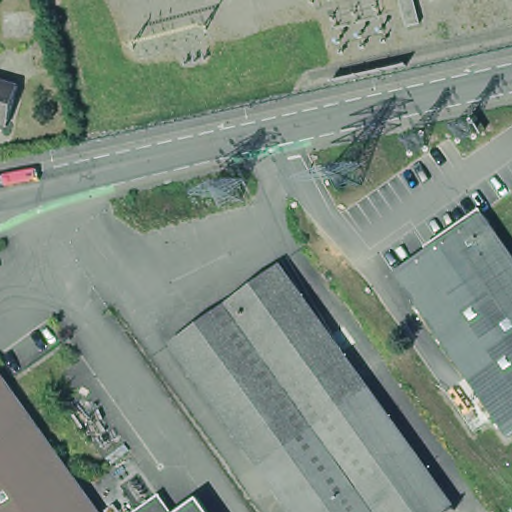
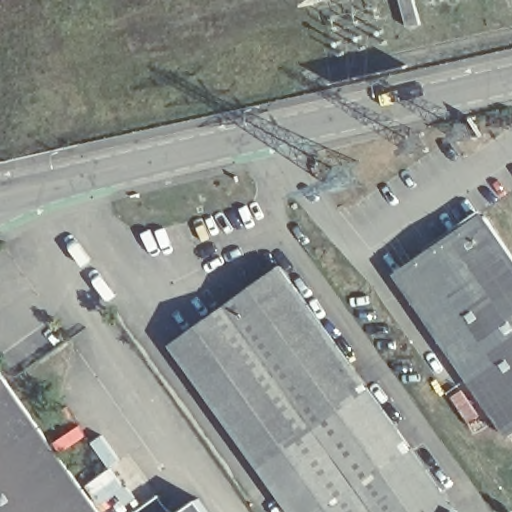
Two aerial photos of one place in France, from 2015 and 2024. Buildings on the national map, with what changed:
demolished [(17,92),(11,115),(7,131),(0,129),(0,87),(17,92)]
unchanged [(392,275),(481,214),(512,259),(512,429),(502,435),(392,275)]
unchanged [(418,453),(335,512),(297,512),(177,345),(285,267),(418,453)]
unchanged [(102,512),(0,512),(0,370),(102,512)]
unchanged [(460,512),(335,512),(418,453),(460,512)]
unchanged [(160,494),(173,512),(135,512),(160,494)]
unchanged [(198,497),(209,512),(177,512),(198,497)]

